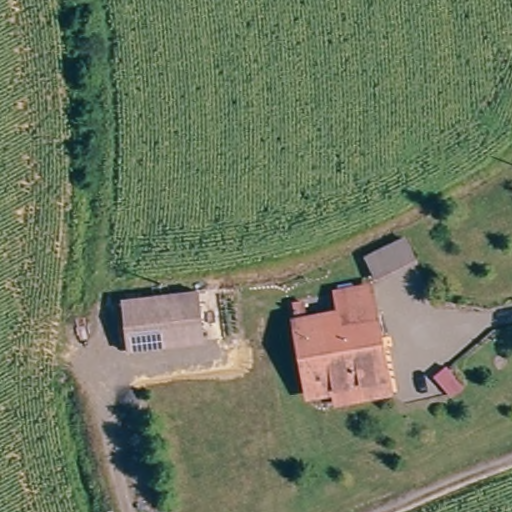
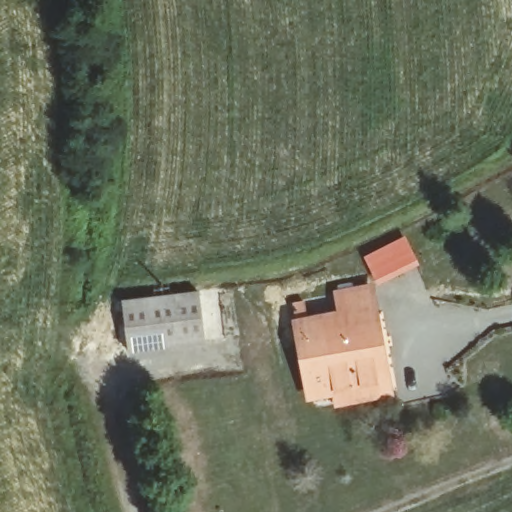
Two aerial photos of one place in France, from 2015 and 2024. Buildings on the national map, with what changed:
unchanged [(378,284),(366,259),(406,236),(418,262),(378,284)]
unchanged [(199,290),(207,340),(132,352),(124,302),(199,290)]
unchanged [(336,403),(334,391),(308,395),(297,321),(295,304),(306,302),(308,319),(342,314),(340,295),(372,290),(386,384),(387,396),(336,403)]

